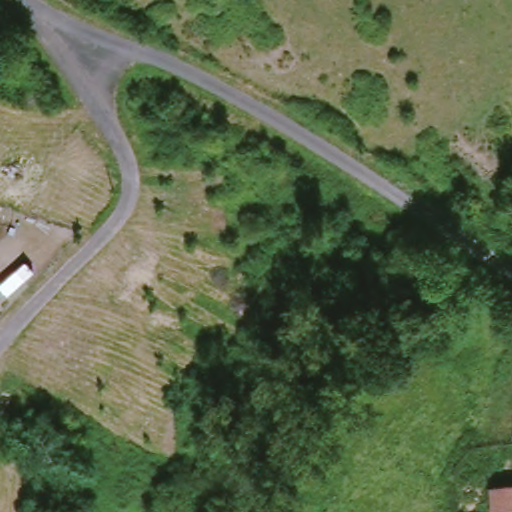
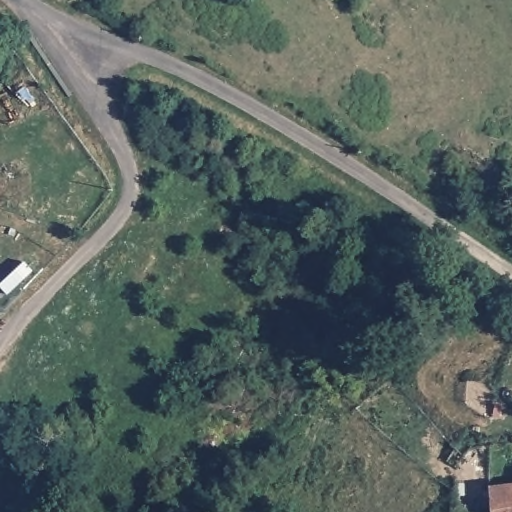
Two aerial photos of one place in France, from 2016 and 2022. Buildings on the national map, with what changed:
unchanged [(495,512),(493,488),(512,486),(512,512),(495,512)]

